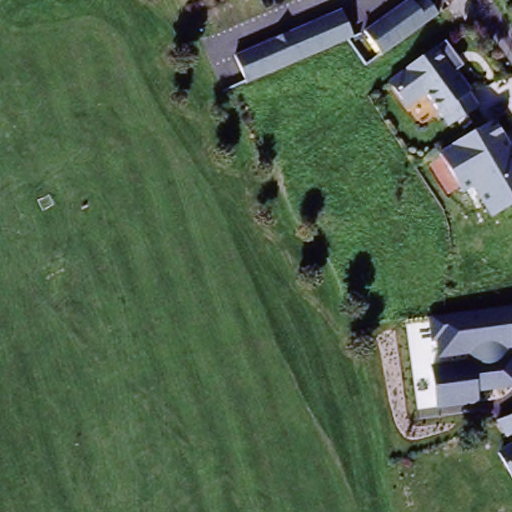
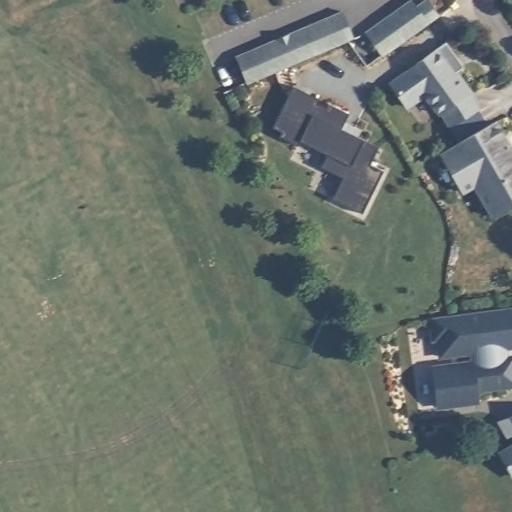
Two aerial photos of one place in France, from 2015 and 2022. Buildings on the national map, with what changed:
unchanged [(377,56),(360,33),(407,0),(412,7),(420,0),(421,0),(432,14),(434,15),(432,17),(377,56)]
unchanged [(248,85),(236,57),(342,11),(354,39),(248,85)]
unchanged [(464,86),(475,101),(449,124),(439,113),(438,114),(422,96),(406,111),(387,90),(399,80),(444,46),(457,61),(464,70),(457,75),(465,85),(464,86)]
new [(292,86),(319,99),(318,104),(327,108),(329,103),(349,112),(340,132),(378,149),(370,166),(384,172),(362,215),(333,201),(343,180),(321,169),(328,156),(300,142),(298,147),(279,138),(282,134),(273,129),(292,86)]
unchanged [(493,125),(512,159),(512,208),(492,220),(474,189),(464,195),(441,156),(493,125)]
unchanged [(432,366),(440,366),(437,340),(431,340),(429,317),(512,306),(512,387),(478,391),(479,403),(437,410),(432,366)]
unchanged [(512,433),(503,438),(494,424),(512,417),(512,434),(512,433)]
unchanged [(498,455),(512,447),(512,480),(498,455)]

